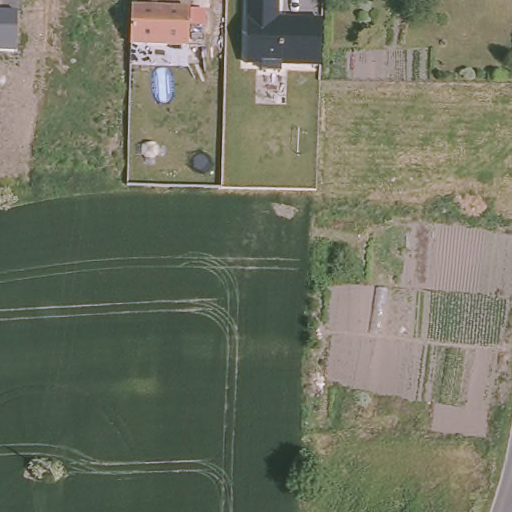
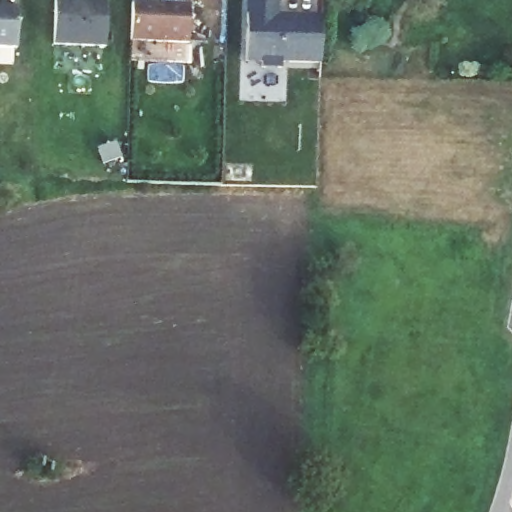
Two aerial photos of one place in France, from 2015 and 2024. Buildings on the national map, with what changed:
unchanged [(287,0),(286,24),(298,24),(298,21),(332,23),(330,69),(290,67),(290,73),(270,73),(270,66),(254,66),(257,0),(287,0)]
new [(105,54),(50,51),(52,1),(104,4),(105,54)]
unchanged [(189,5),(190,11),(207,10),(206,26),(190,26),(190,46),(131,44),(132,5),(189,5)]
unchanged [(17,51),(0,50),(0,9),(17,10),(17,51)]

